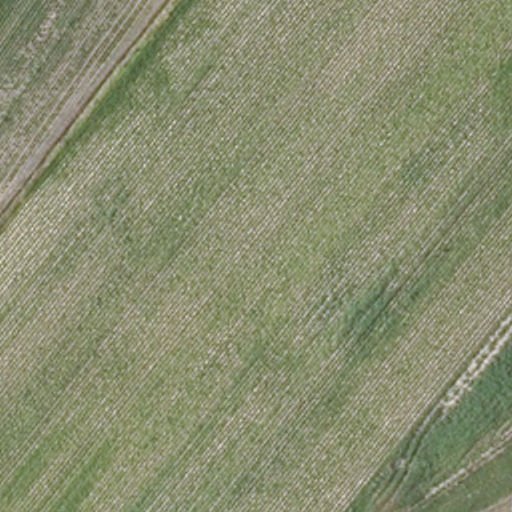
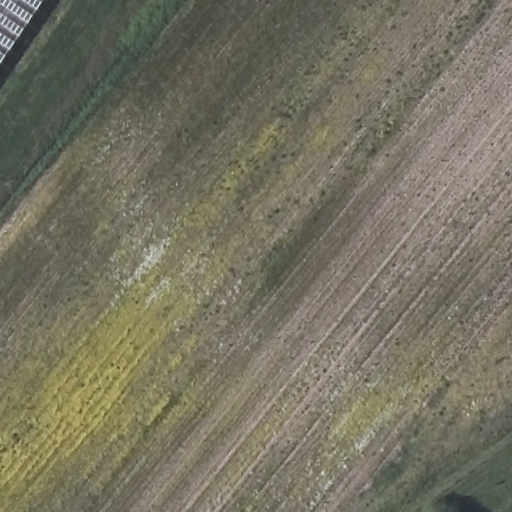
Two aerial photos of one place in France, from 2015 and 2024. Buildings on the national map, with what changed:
new [(0,0),(39,0),(0,59),(0,0)]

